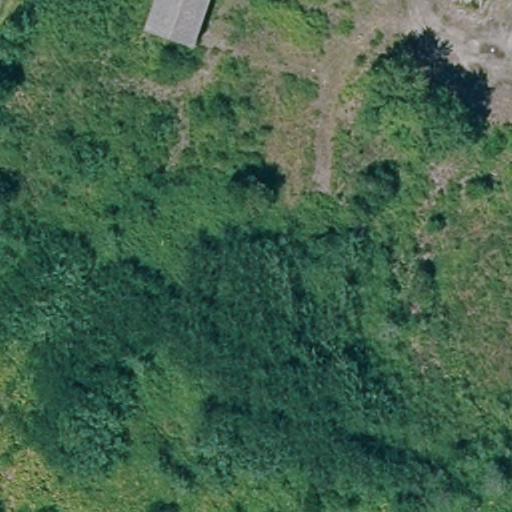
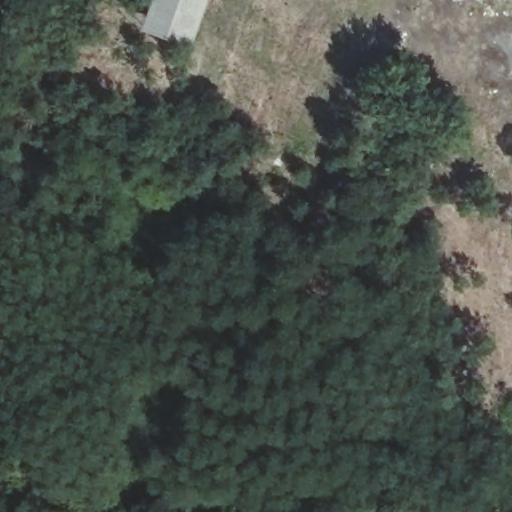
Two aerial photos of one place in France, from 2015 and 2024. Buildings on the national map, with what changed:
unchanged [(201,0),(186,44),(141,28),(150,0),(201,0)]

